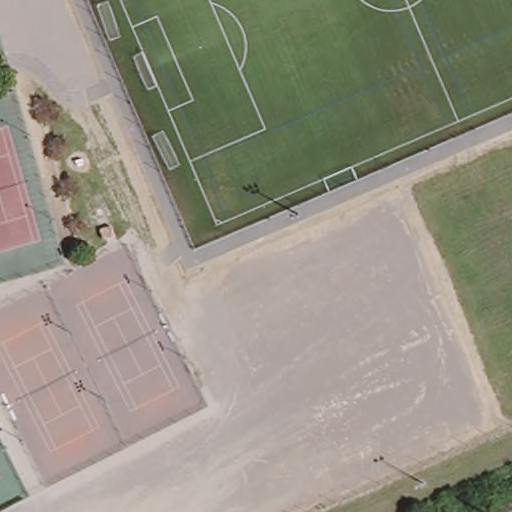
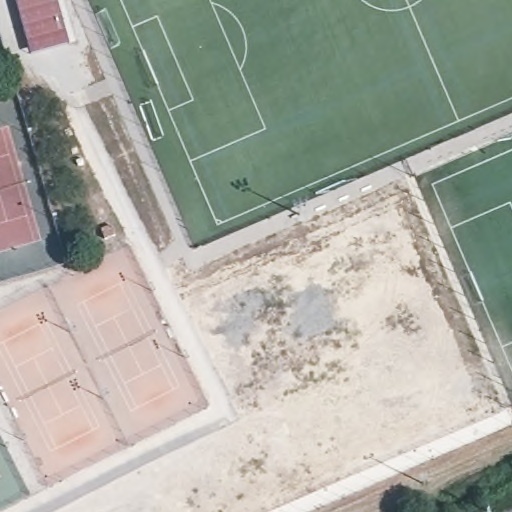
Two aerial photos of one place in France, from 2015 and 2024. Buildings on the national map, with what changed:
new [(69,44),(30,55),(15,0),(57,0),(69,44)]

